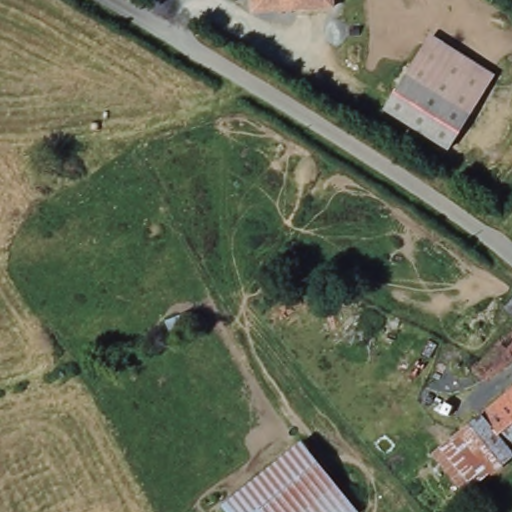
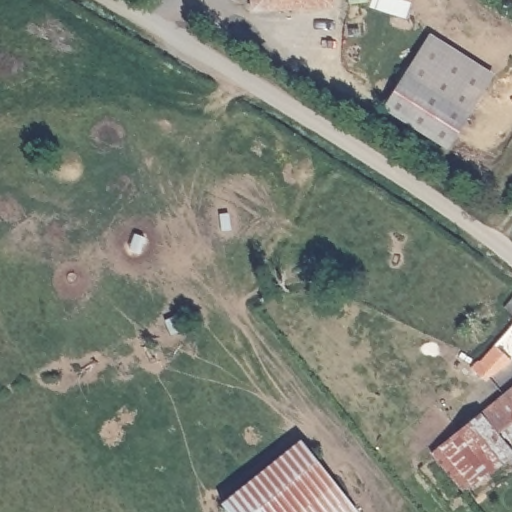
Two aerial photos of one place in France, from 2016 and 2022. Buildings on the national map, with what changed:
unchanged [(333,0),(333,9),(252,16),(251,0),(333,0)]
unchanged [(493,74),(447,151),(380,110),(428,33),(493,74)]
unchanged [(512,286),(512,310),(501,300),(512,286)]
unchanged [(467,364),(473,357),(477,358),(512,321),(512,358),(482,378),(467,364)]
unchanged [(512,384),(512,426),(506,432),(503,434),(501,436),(498,438),(477,415),(512,384)]
unchanged [(512,455),(512,456),(510,458),(493,471),(458,431),(477,415),(498,438),(512,455)]
unchanged [(512,426),(512,444),(503,434),(506,432),(512,426)]
unchanged [(493,471),(486,477),(478,483),(475,486),(467,492),(456,502),(432,473),(442,465),(433,453),(458,431),(493,471)]
unchanged [(354,506),(347,512),(222,512),(219,508),(298,441),(354,506)]

